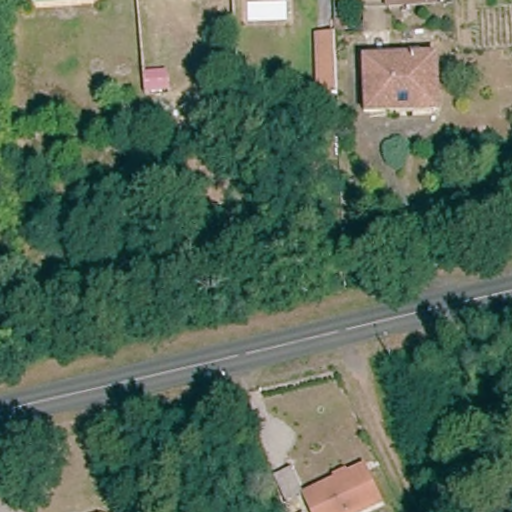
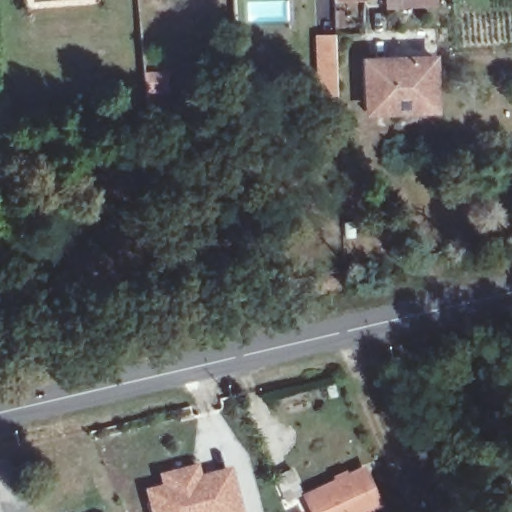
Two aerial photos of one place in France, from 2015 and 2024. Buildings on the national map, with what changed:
unchanged [(332,0),(355,0),(332,1),(332,0)]
new [(403,9),(402,0),(442,0),(442,7),(403,9)]
unchanged [(345,36),(350,94),(350,97),(334,98),(328,37),(345,35),(345,36)]
unchanged [(436,54),(439,85),(429,86),(430,104),(389,108),(389,118),(368,119),(365,63),(383,61),(436,54)]
new [(163,487),(159,475),(200,465),(202,475),(232,467),(243,512),(150,512),(144,489),(163,487)]
unchanged [(323,488),(321,482),(333,476),(335,482),(362,469),(379,505),(364,512),(312,512),(305,497),(323,488)]
unchanged [(291,471),(300,494),(285,500),(276,477),(291,471)]

